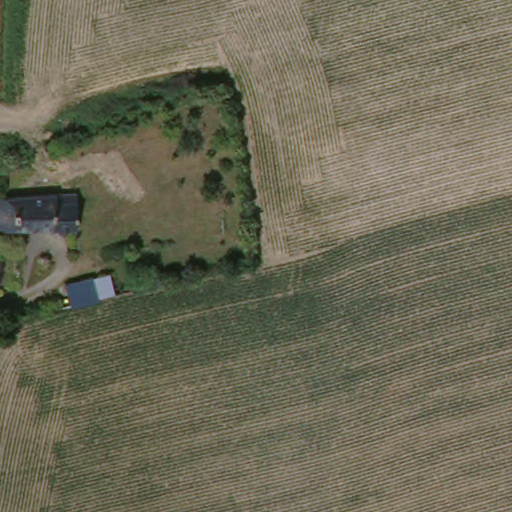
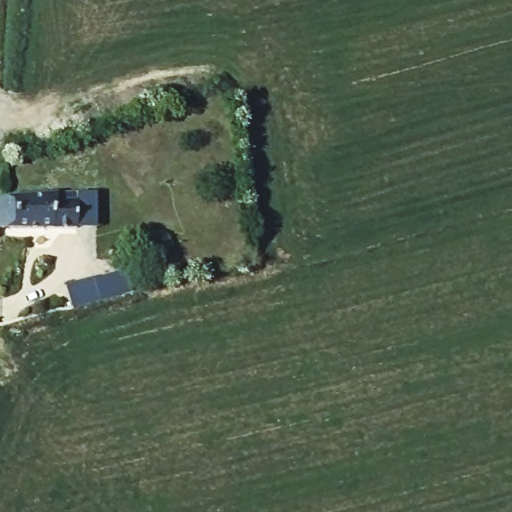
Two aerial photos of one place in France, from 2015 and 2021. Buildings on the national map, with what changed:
unchanged [(54,197),(55,206),(80,205),(83,228),(66,228),(0,232),(0,225),(1,211),(4,199),(54,197)]
unchanged [(119,270),(124,286),(126,292),(118,294),(57,310),(53,288),(119,270)]

